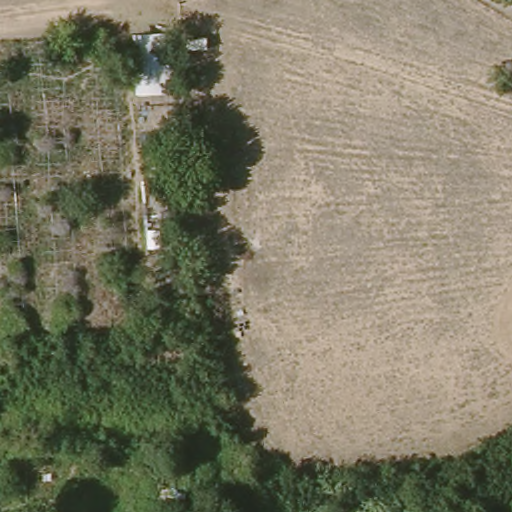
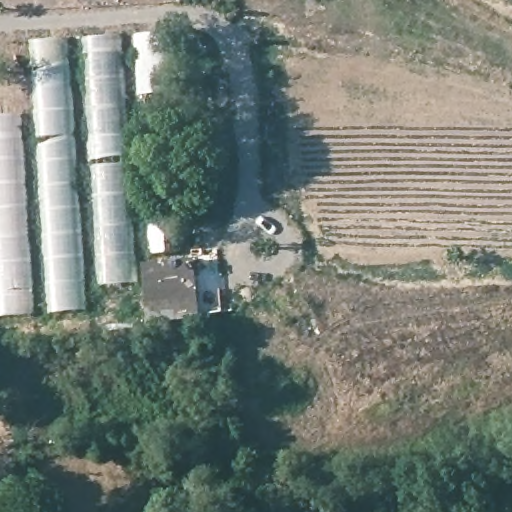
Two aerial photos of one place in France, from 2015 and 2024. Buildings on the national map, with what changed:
new [(137,96),(134,32),(159,32),(162,94),(137,96)]
new [(86,310),(0,317),(0,116),(30,114),(27,40),(122,34),(139,281),(84,285),(86,310)]

